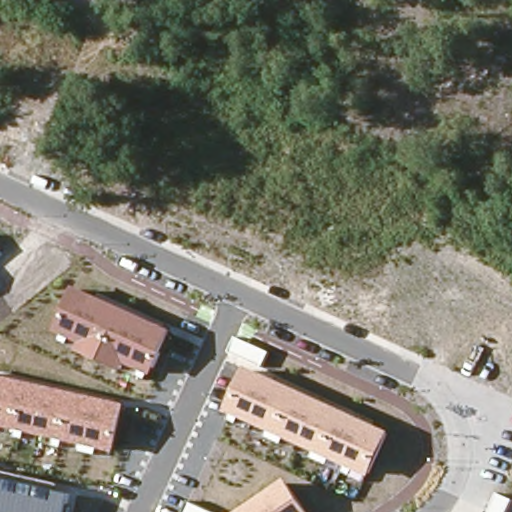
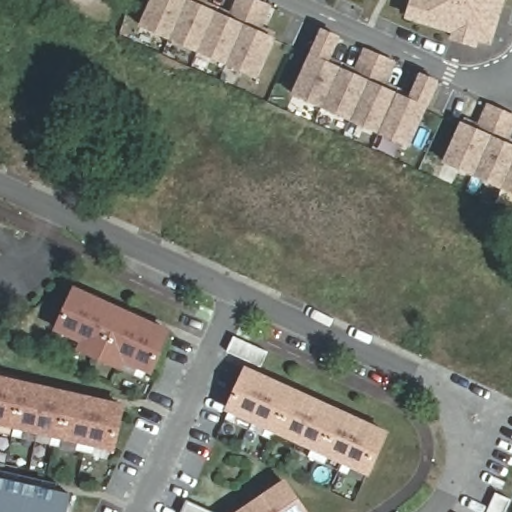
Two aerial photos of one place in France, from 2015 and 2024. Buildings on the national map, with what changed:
new [(207,8),(234,20),(244,0),(258,0),(260,1),(274,7),(263,33),(278,39),(260,78),(146,26),(158,0),(211,0),(207,8)]
new [(493,43),(419,20),(425,0),(506,0),(493,43)]
new [(371,50),(386,57),(400,63),(389,89),(416,101),(427,75),(443,83),(431,108),(414,146),(300,95),(317,57),(329,31),(344,38),(333,64),(360,76),(371,50)]
new [(494,107),(508,113),(512,115),(512,143),(511,145),(512,146),(512,192),(451,164),(468,126),(483,132),(494,107)]
unchanged [(154,374),(126,362),(123,370),(77,350),(80,342),(51,330),(72,284),(173,329),(154,374)]
unchanged [(371,476),(224,410),(245,365),(390,430),(371,476)]
unchanged [(0,426),(0,375),(126,402),(116,452),(0,426)]
unchanged [(0,512),(0,477),(72,493),(68,512),(0,512)]
unchanged [(308,512),(237,512),(286,479),(308,512)]
new [(511,497),(504,512),(486,512),(487,511),(496,490),(511,497)]
unchanged [(214,512),(183,512),(188,500),(214,512)]

